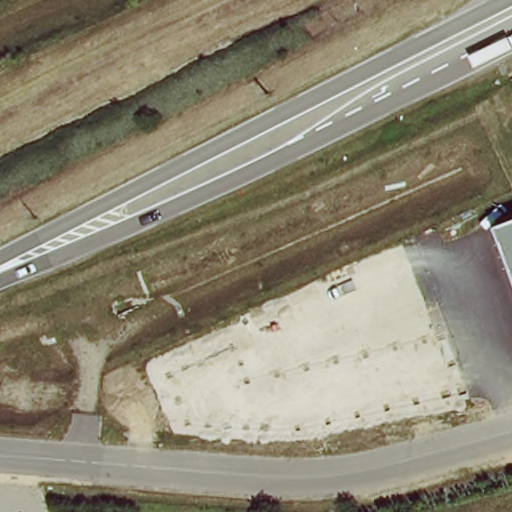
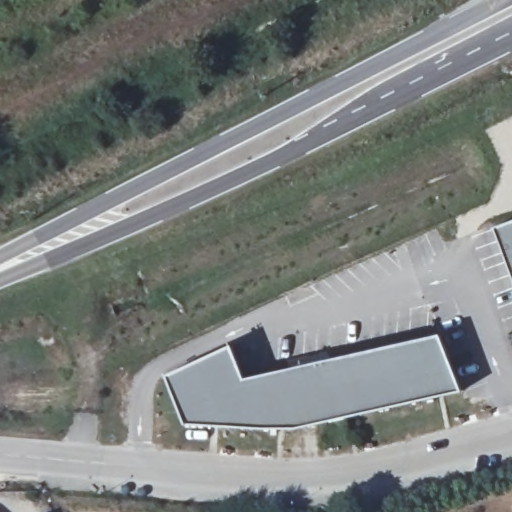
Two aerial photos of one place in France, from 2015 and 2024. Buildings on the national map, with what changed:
unchanged [(494,227),(512,221),(512,276),(494,227)]
new [(440,336),(462,392),(296,431),(185,427),(166,377),(231,347),(247,380),(440,336)]

